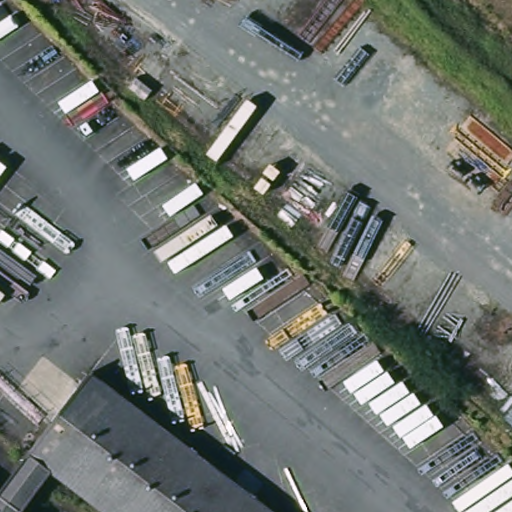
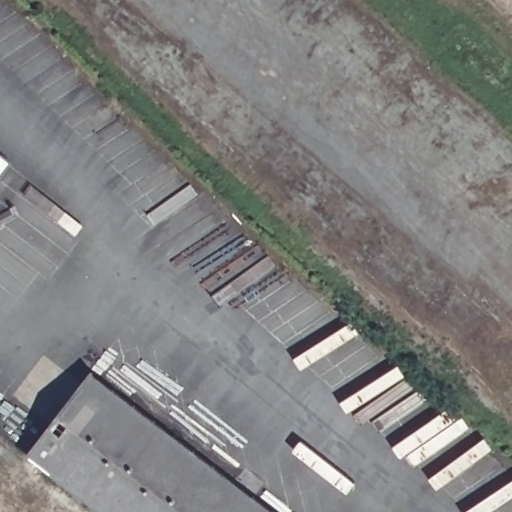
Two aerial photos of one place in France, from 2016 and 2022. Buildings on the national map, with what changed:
unchanged [(28,454),(91,370),(275,512),(103,512),(66,484),(28,454)]
demolished [(66,484),(44,512),(0,512),(0,490),(28,454),(66,484)]

